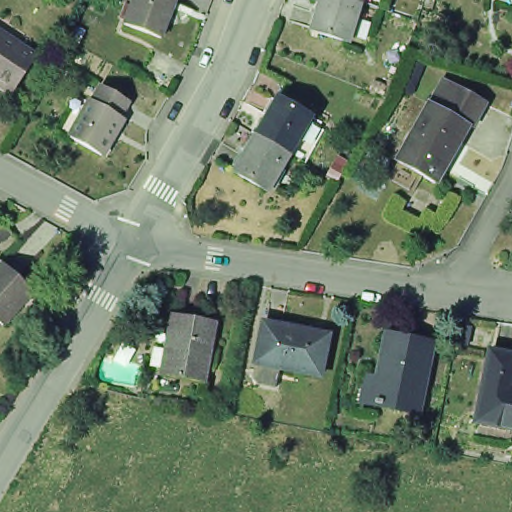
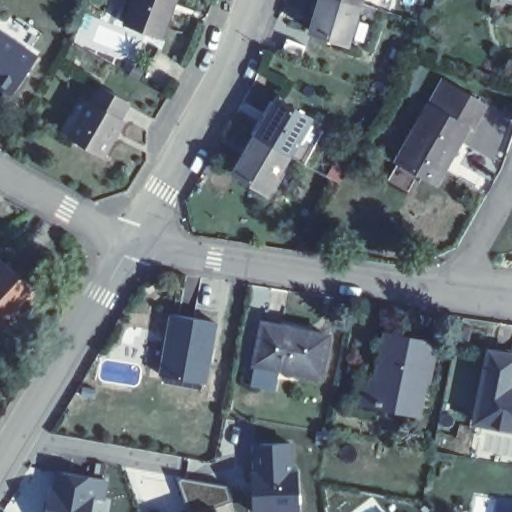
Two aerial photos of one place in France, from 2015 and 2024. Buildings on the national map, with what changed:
unchanged [(157,39),(119,21),(129,0),(174,0),(157,39)]
unchanged [(360,0),(347,38),(310,26),(318,0),(358,0),(360,0)]
unchanged [(9,92),(0,86),(0,35),(33,56),(9,92)]
unchanged [(441,75),(482,100),(469,122),(464,120),(427,98),(441,75)]
unchanged [(125,99),(104,141),(109,144),(102,155),(69,137),(89,97),(94,100),(102,85),(125,99)]
unchanged [(276,95),(309,115),(287,152),(254,132),(276,95)]
unchanged [(409,129),(427,98),(464,120),(450,145),(409,129)]
unchanged [(431,179),(392,157),(409,129),(450,145),(431,179)]
unchanged [(287,152),(266,189),(232,170),(254,132),(287,152)]
unchanged [(2,325),(0,322),(0,267),(3,265),(32,296),(2,325)]
unchanged [(218,322),(206,381),(164,373),(177,313),(218,322)]
unchanged [(320,333),(313,373),(246,361),(255,320),(320,333)]
unchanged [(408,410),(363,401),(375,341),(377,331),(395,334),(423,340),(408,410)]
unchanged [(470,422),(486,353),(512,358),(512,363),(506,389),(512,390),(512,431),(470,422)]
new [(257,474),(256,444),(291,442),(292,472),(297,472),(300,510),(266,512),(254,512),(254,490),(253,475),(253,474),(257,474)]
new [(46,500),(50,500),(52,488),(56,489),(60,471),(107,480),(104,499),(94,497),(91,512),(48,512),(50,501),(46,500)]
new [(177,480),(179,478),(181,478),(226,486),(232,501),(216,510),(217,512),(190,512),(177,482),(177,480)]

